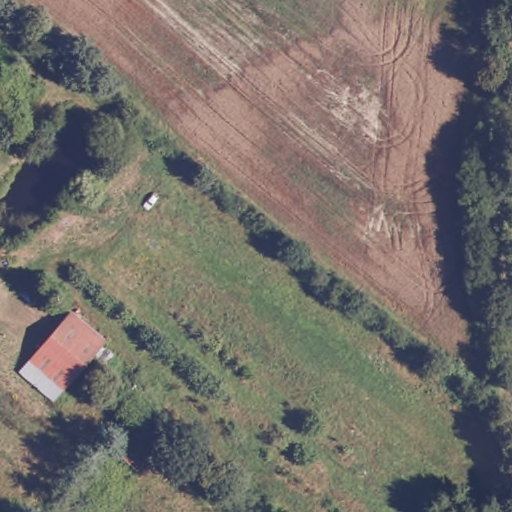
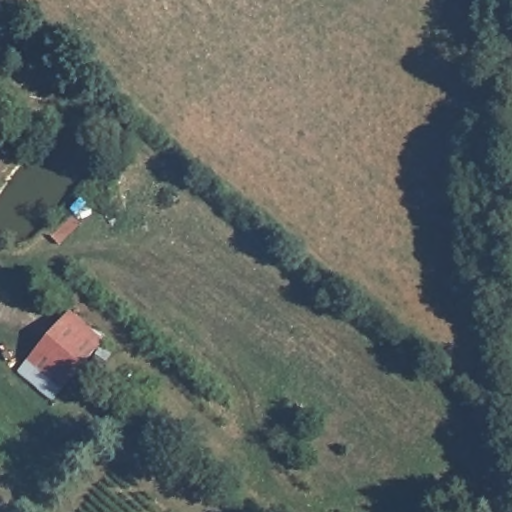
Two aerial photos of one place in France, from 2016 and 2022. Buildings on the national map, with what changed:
unchanged [(111,340),(58,400),(21,368),(72,309),(111,340)]

